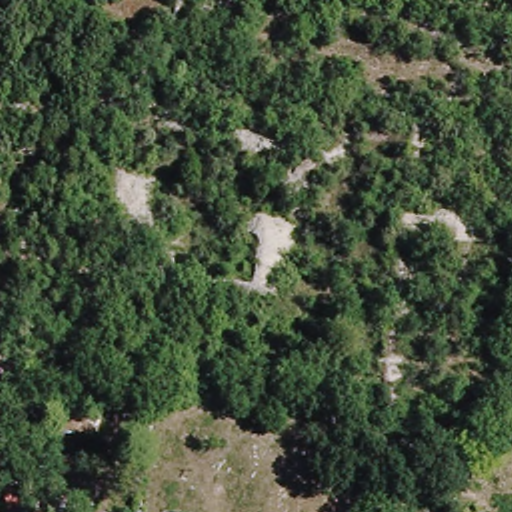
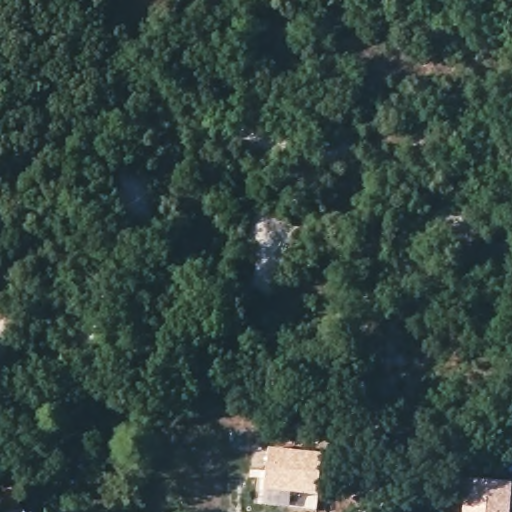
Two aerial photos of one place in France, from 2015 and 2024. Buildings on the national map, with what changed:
new [(325,455),(321,497),(265,490),(270,448),(325,455)]
new [(512,483),(512,498),(511,512),(462,512),(464,480),(512,483)]
unchanged [(27,512),(0,512),(0,510),(25,506),(27,512)]

